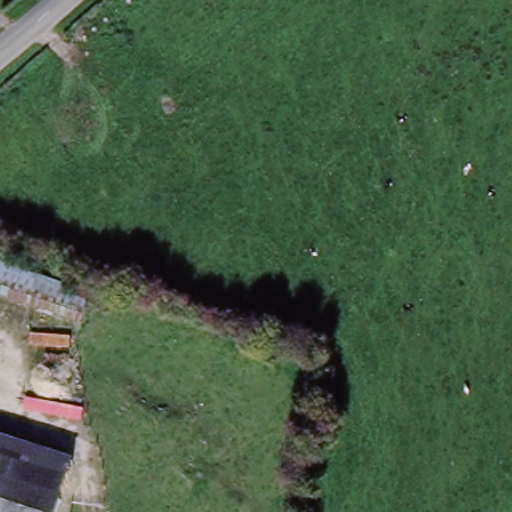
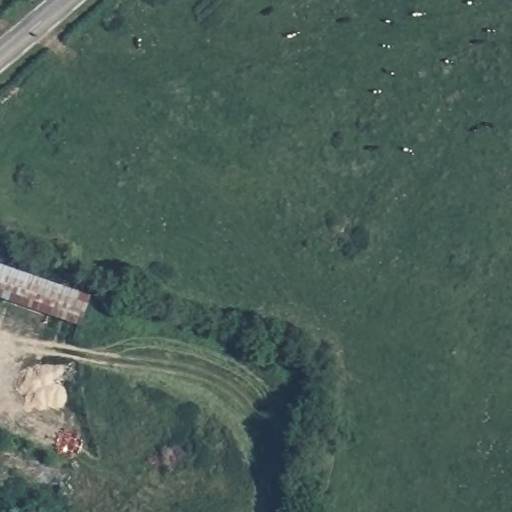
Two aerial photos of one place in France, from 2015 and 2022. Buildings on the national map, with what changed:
unchanged [(88,305),(81,325),(0,296),(0,270),(89,301),(88,305)]
demolished [(58,512),(0,512),(0,442),(72,465),(58,512)]

